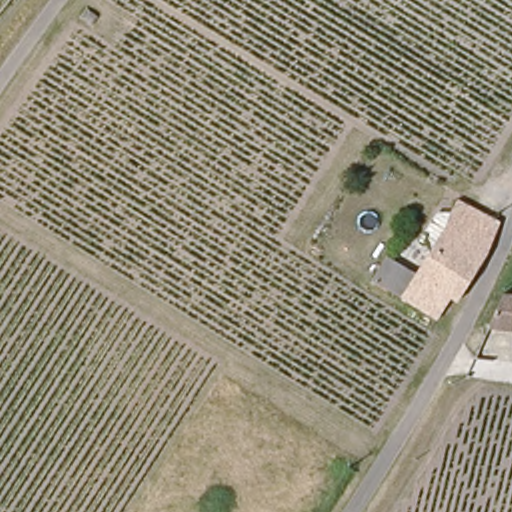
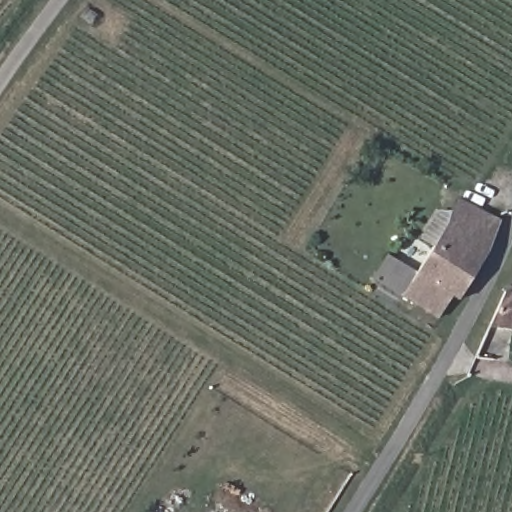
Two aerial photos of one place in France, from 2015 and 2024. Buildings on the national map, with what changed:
unchanged [(452,290),(438,311),(403,291),(457,195),(499,217),(483,252),(458,294),(452,290)]
unchanged [(512,295),(512,328),(488,325),(502,295),(512,295)]

